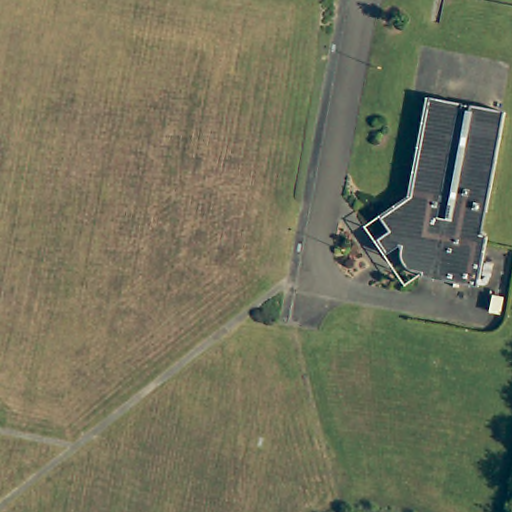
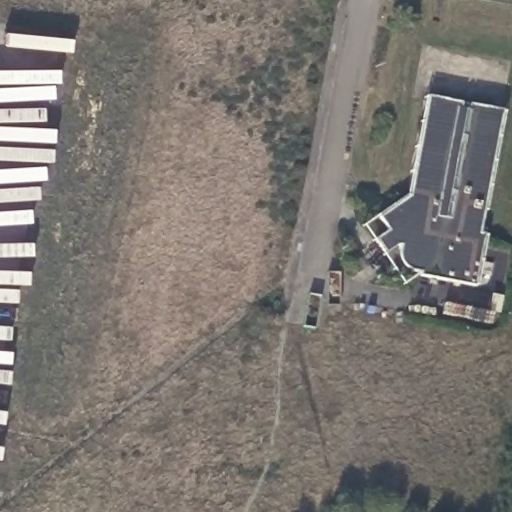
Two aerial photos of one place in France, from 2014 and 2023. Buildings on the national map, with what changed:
unchanged [(377,217),(407,198),(425,99),(459,104),(458,112),(467,114),(468,106),(500,111),(480,237),(486,237),(478,287),(420,277),(421,268),(410,268),(396,246),(383,256),(374,242),(365,226),(377,217)]

